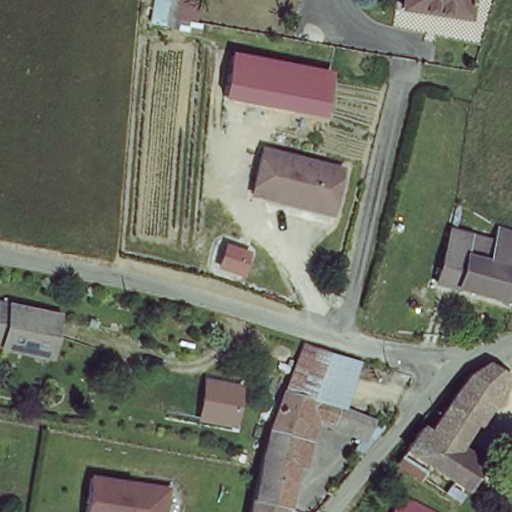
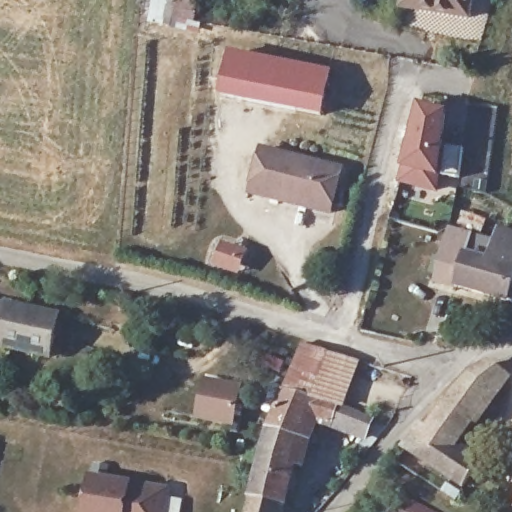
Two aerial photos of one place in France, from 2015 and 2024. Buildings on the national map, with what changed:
unchanged [(161,25),(164,0),(184,0),(180,28),(161,25)]
unchanged [(409,12),(410,0),(472,0),(469,21),(409,12)]
unchanged [(330,75),(324,115),(226,95),(233,55),(330,75)]
new [(416,100),(440,106),(435,137),(457,140),(451,190),(442,187),(426,196),(392,187),(416,100)]
unchanged [(342,168),(333,215),(309,209),(311,200),(277,192),(276,201),(256,197),(266,150),(342,168)]
unchanged [(462,287),(432,275),(445,227),(499,244),(503,230),(512,233),(512,302),(462,287)]
unchanged [(3,346),(5,339),(0,338),(0,301),(61,315),(52,358),(3,346)]
unchanged [(340,358),(328,400),(287,386),(299,343),(340,358)]
unchanged [(437,429),(471,375),(487,368),(502,361),(512,369),(512,377),(469,447),(437,429)]
unchanged [(203,383),(236,390),(229,425),(196,419),(203,383)]
unchanged [(326,407),(379,425),(371,450),(315,432),(304,466),(294,497),(291,512),(253,512),(254,505),(257,493),(287,386),(328,400),(326,407)]
unchanged [(497,464),(477,498),(409,456),(430,425),(437,429),(469,447),(497,464)]
unchanged [(89,472),(164,485),(161,512),(84,512),(89,472)]
unchanged [(403,495),(431,512),(392,512),(403,495)]

